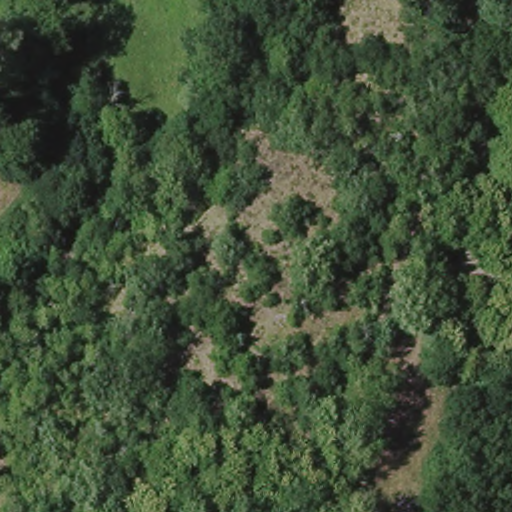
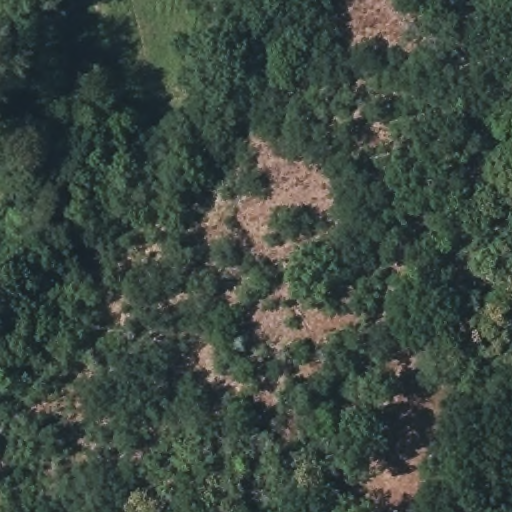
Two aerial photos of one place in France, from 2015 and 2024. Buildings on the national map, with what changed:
[]

